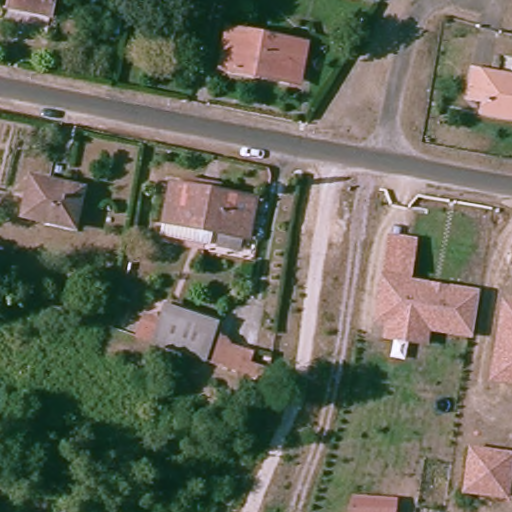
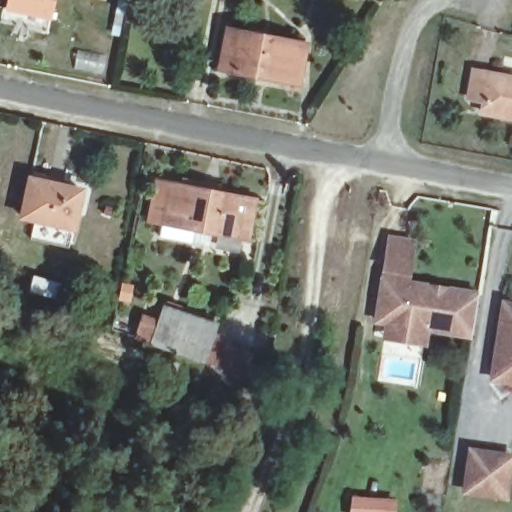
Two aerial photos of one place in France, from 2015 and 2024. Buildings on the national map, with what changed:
unchanged [(10,13),(13,0),(58,0),(53,22),(10,13)]
unchanged [(304,88),(283,84),(215,72),(222,37),(290,47),(310,50),(304,88)]
unchanged [(512,120),(483,114),(485,103),(469,100),(475,72),(512,80),(512,120)]
unchanged [(85,192),(78,232),(25,222),(32,182),(85,192)]
unchanged [(251,241),(171,225),(180,184),(260,200),(251,241)]
unchanged [(383,337),(385,322),(374,321),(382,272),(407,277),(406,282),(476,294),(477,294),(471,327),(469,337),(424,329),(422,343),(383,337)]
unchanged [(490,379),(494,358),(498,329),(503,304),(512,305),(512,382),(511,382),(490,379)]
unchanged [(277,390),(134,339),(138,326),(160,331),(166,309),(224,328),(222,340),(231,343),(230,349),(255,355),(253,365),(284,377),(277,390)]
unchanged [(512,457),(505,497),(466,490),(472,450),(512,457)]

